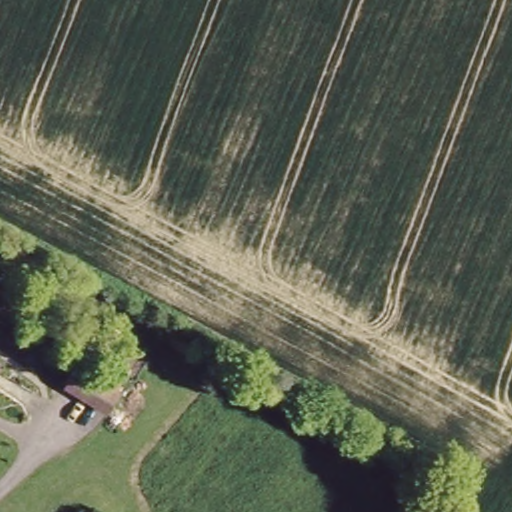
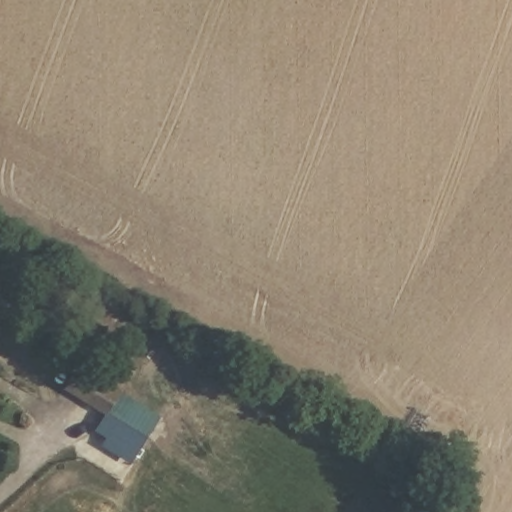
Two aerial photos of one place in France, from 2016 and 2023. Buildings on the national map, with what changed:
unchanged [(77,364),(121,388),(106,417),(59,390),(77,364)]
new [(132,464),(104,446),(109,438),(97,432),(106,417),(120,390),(162,417),(132,464)]

